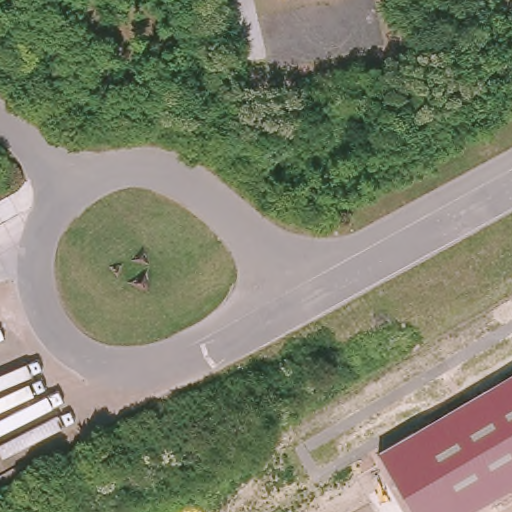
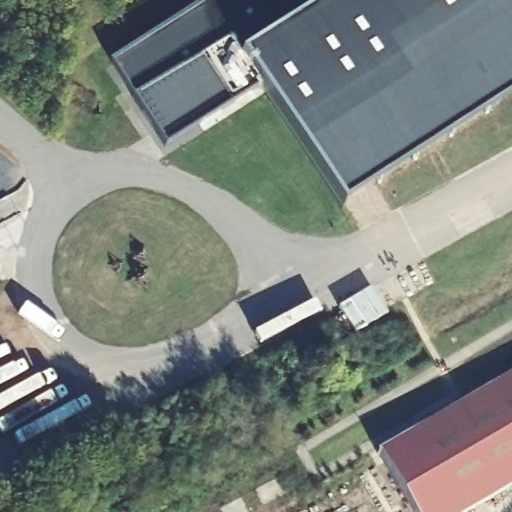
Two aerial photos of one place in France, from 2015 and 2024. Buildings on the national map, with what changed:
new [(165,146),(110,61),(206,0),(512,0),(512,97),(343,206),(262,83),(165,146)]
unchanged [(377,452),(512,373),(512,487),(469,512),(412,512),(377,452)]

